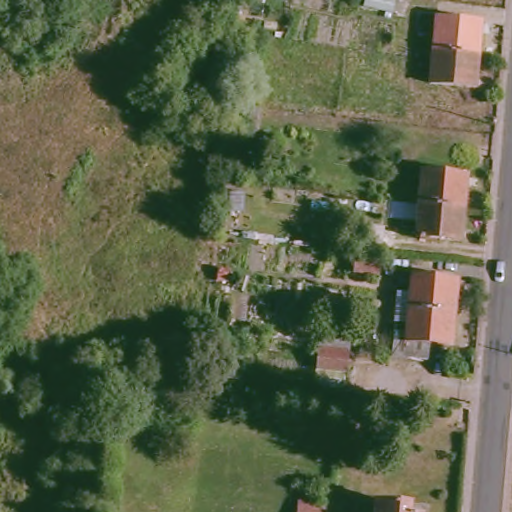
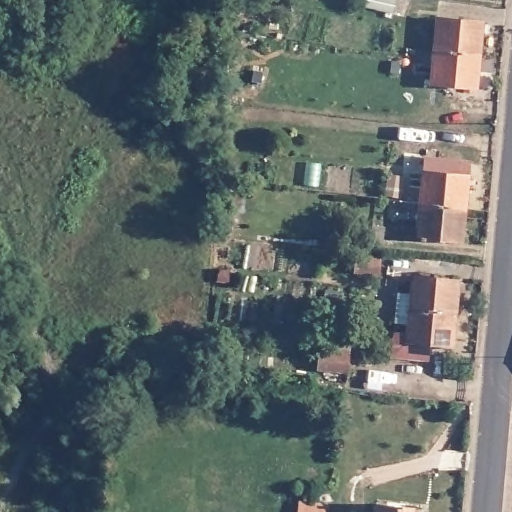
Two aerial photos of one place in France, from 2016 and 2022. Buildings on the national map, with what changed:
unchanged [(433,21),(476,24),(474,56),(431,51),(433,21)]
unchanged [(474,56),(472,90),(430,86),(431,51),(474,56)]
unchanged [(416,168),(460,173),(457,205),(413,199),(416,168)]
unchanged [(457,205),(455,237),(410,232),(413,199),(457,205)]
unchanged [(395,276),(451,281),(448,313),(392,306),(395,276)]
unchanged [(445,344),(425,342),(423,360),(376,356),(379,334),(390,335),(392,306),(448,313),(445,344)]
unchanged [(317,368),(320,337),(350,339),(349,353),(347,370),(317,368)]
unchanged [(403,504),(405,504),(404,512),(368,512),(369,502),(403,504)]

